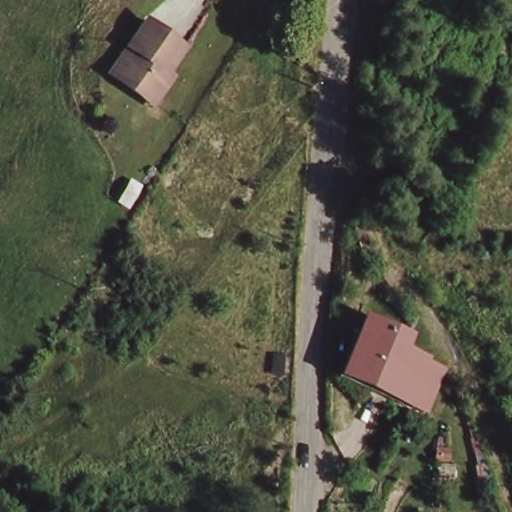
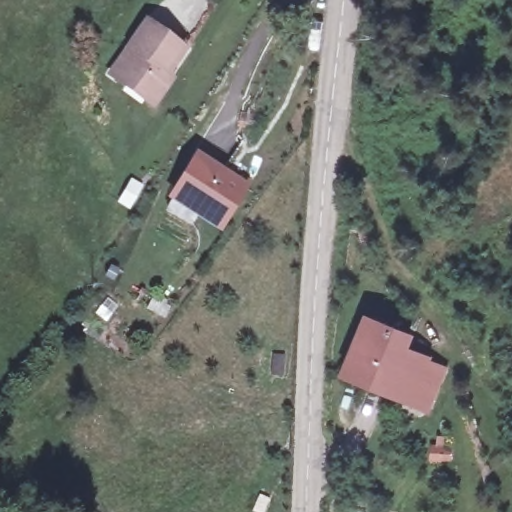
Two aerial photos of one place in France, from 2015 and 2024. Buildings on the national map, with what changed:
unchanged [(121,57),(149,16),(187,40),(169,68),(176,74),(157,102),(122,80),(110,72),(121,57)]
new [(197,150),(252,183),(222,232),(195,215),(192,223),(167,210),(170,200),(166,198),(197,150)]
unchanged [(414,402),(349,372),(375,314),(412,332),(404,353),(429,361),(414,402)]

